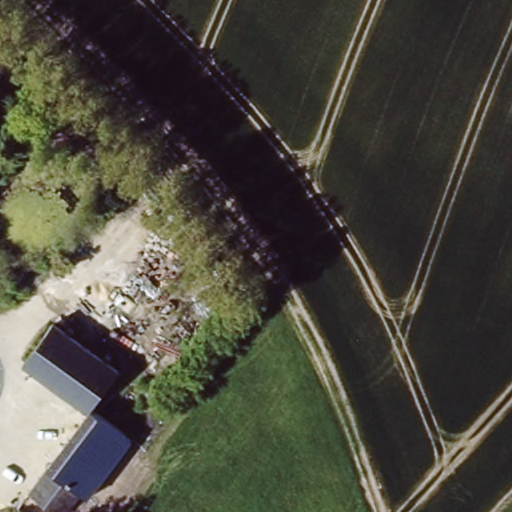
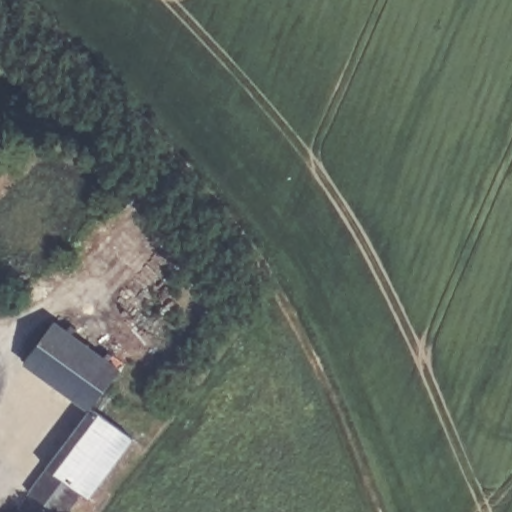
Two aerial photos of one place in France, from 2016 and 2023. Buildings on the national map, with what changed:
unchanged [(122,369),(92,412),(30,366),(60,322),(122,369)]
unchanged [(137,445),(93,505),(85,500),(48,471),(92,412),(137,445)]
unchanged [(55,512),(31,493),(48,471),(85,500),(75,512),(55,512)]

